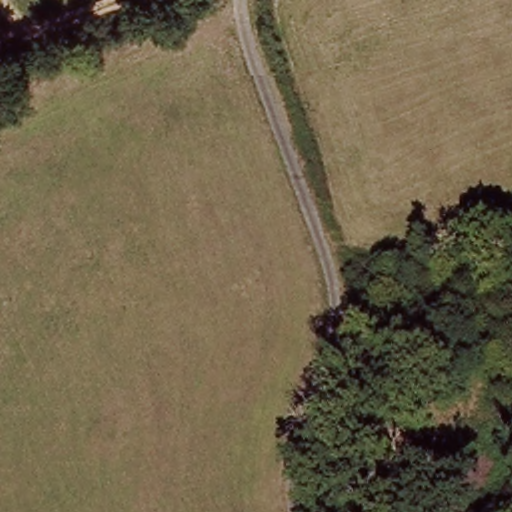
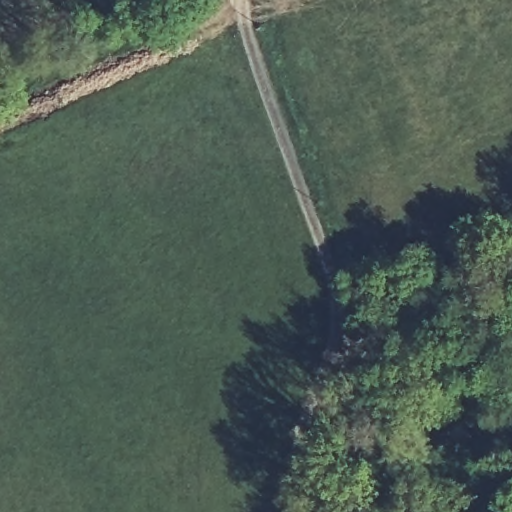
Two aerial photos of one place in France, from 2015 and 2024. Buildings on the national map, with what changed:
[]

